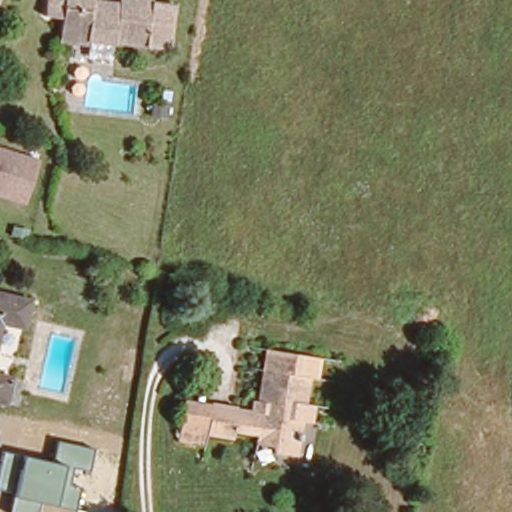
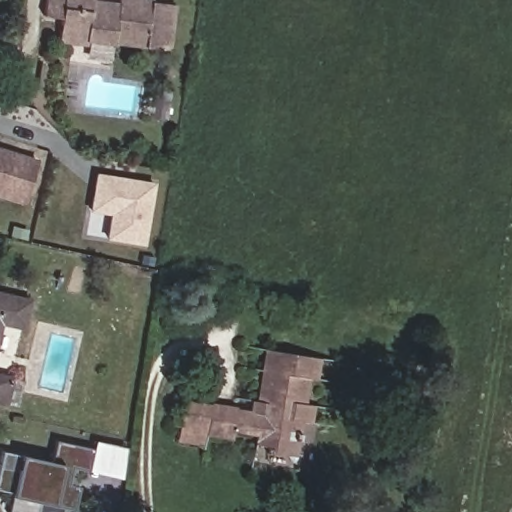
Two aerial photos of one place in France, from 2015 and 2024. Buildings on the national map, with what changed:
unchanged [(90,33),(89,42),(57,36),(62,12),(46,8),(47,0),(147,0),(146,3),(169,6),(164,52),(141,48),(142,43),(115,38),(90,33)]
unchanged [(34,163),(21,203),(0,195),(0,151),(34,163)]
new [(144,247),(105,241),(109,215),(89,211),(96,173),(155,182),(144,247)]
unchanged [(31,304),(23,329),(6,323),(0,341),(0,294),(31,304)]
unchanged [(181,424),(184,394),(211,398),(251,403),(259,343),(311,350),(321,351),(319,371),(308,369),(305,398),(316,399),(314,416),(303,415),(298,449),(271,447),(271,436),(206,427),(205,436),(180,432),(181,424)]
unchanged [(8,380),(0,403),(0,377),(8,380)]
unchanged [(71,468),(67,485),(80,488),(75,511),(37,502),(35,512),(7,512),(10,494),(0,491),(0,450),(50,461),(55,441),(95,450),(88,472),(71,468)]

